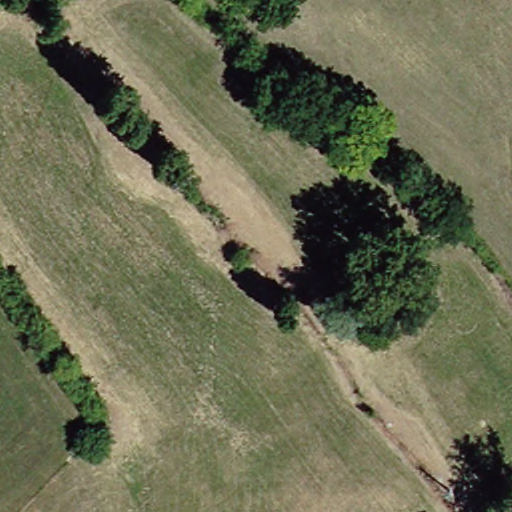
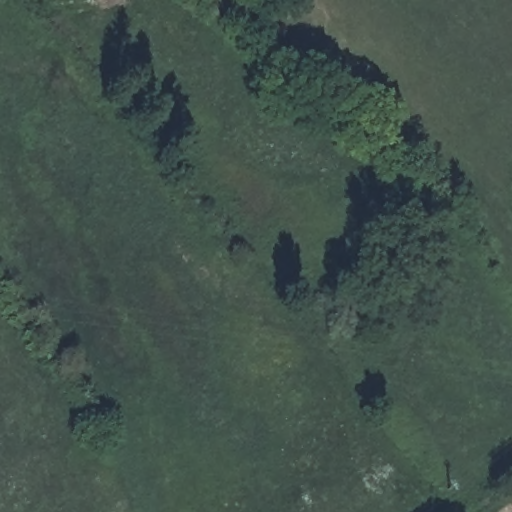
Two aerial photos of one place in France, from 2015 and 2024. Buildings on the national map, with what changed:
[]

